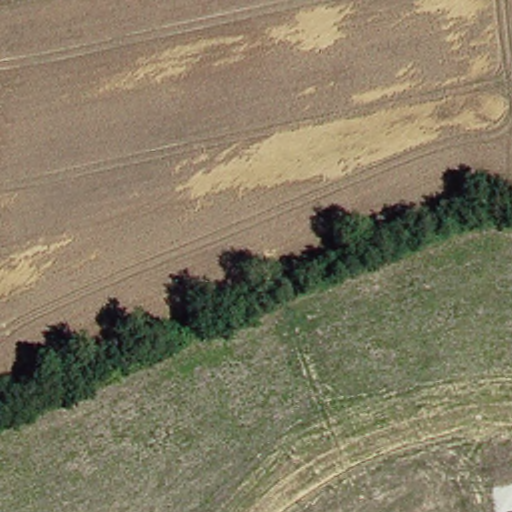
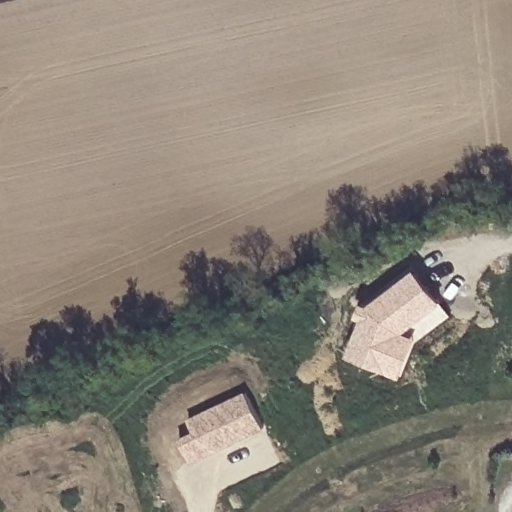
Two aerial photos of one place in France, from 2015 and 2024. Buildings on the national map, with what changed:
new [(405,333),(420,338),(401,379),(347,357),(362,319),(357,317),(365,302),(371,305),(418,268),(445,304),(405,333)]
new [(267,429),(192,463),(180,437),(196,430),(190,418),(249,391),(267,429)]

